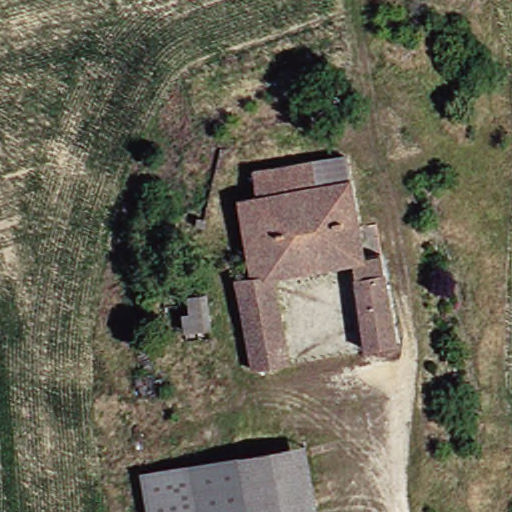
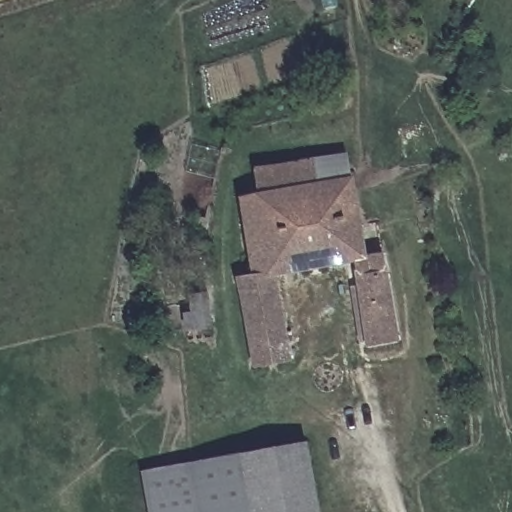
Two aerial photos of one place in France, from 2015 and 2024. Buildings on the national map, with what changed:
unchanged [(254,172),(349,152),(355,179),(259,197),(254,172)]
unchanged [(369,237),(386,233),(403,343),(374,348),(357,262),(277,277),(295,362),(257,369),(239,284),(255,281),(241,202),(259,197),(355,179),(369,237)]
unchanged [(329,512),(154,512),(146,471),(317,443),(329,512)]

